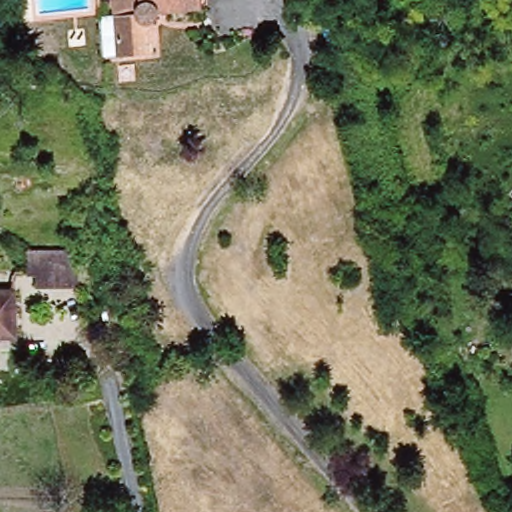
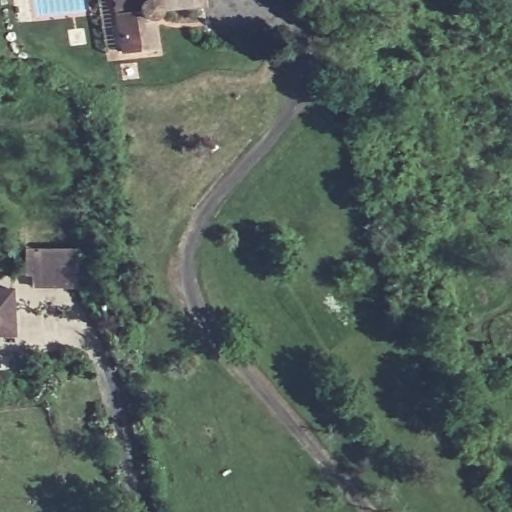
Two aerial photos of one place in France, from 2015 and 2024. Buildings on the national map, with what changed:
unchanged [(158,47),(126,53),(115,0),(174,0),(164,2),(163,10),(153,15),(158,47)]
unchanged [(80,252),(77,290),(41,287),(42,277),(27,276),(30,248),(80,252)]
unchanged [(0,337),(0,293),(18,294),(15,338),(0,337)]

